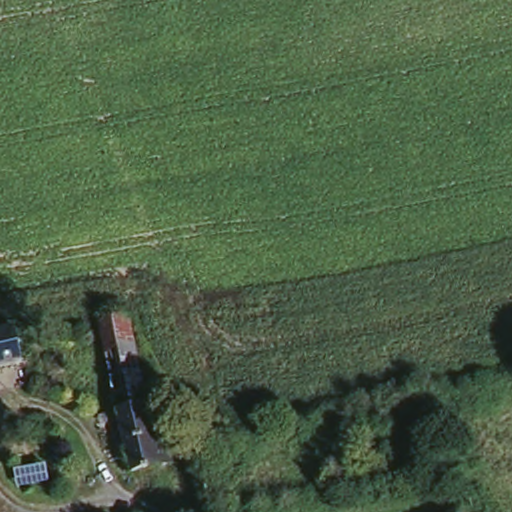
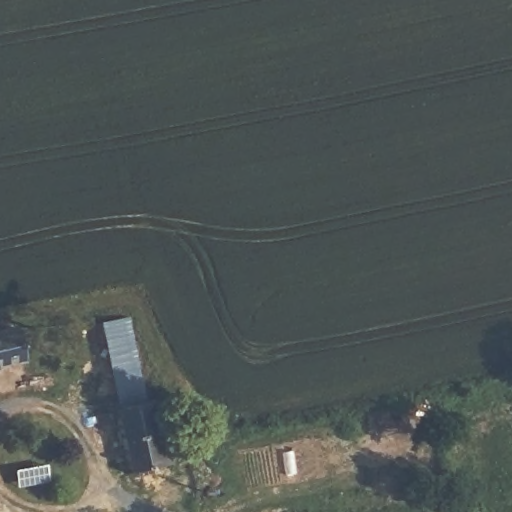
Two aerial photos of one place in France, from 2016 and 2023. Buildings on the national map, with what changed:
unchanged [(129,474),(102,341),(99,323),(130,317),(149,403),(160,401),(172,466),(129,474)]
unchanged [(0,366),(0,328),(16,323),(23,351),(25,358),(0,366)]

